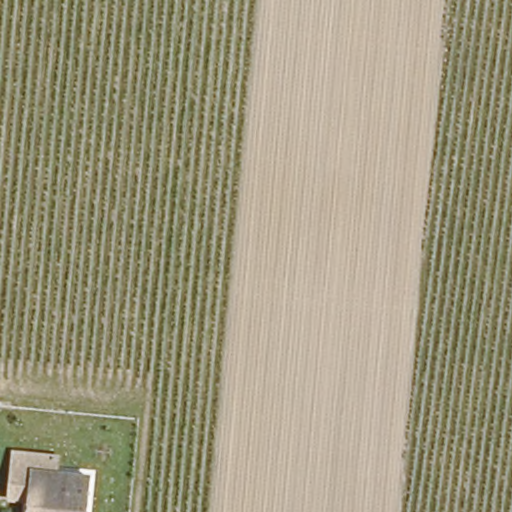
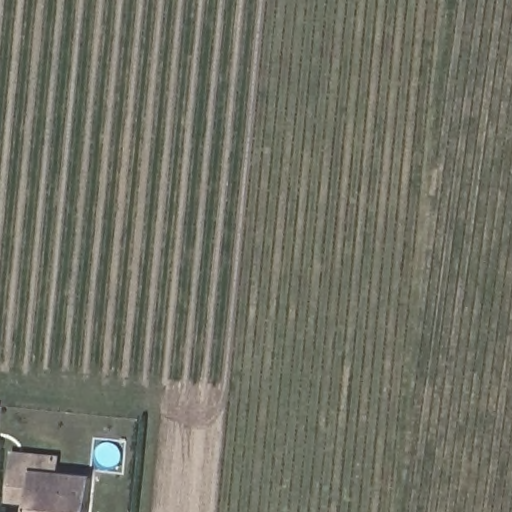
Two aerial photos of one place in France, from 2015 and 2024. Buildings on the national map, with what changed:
unchanged [(89,480),(86,512),(26,512),(29,475),(89,480)]

